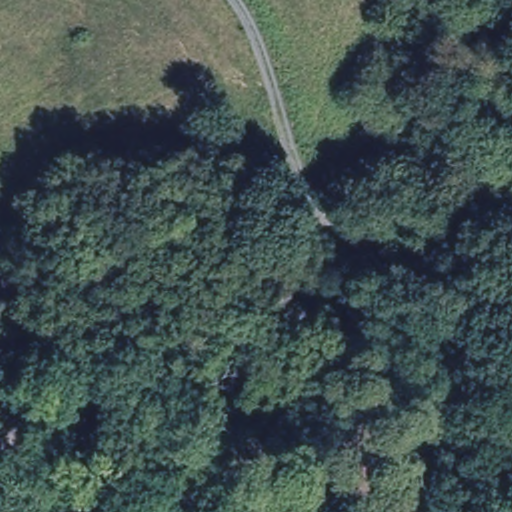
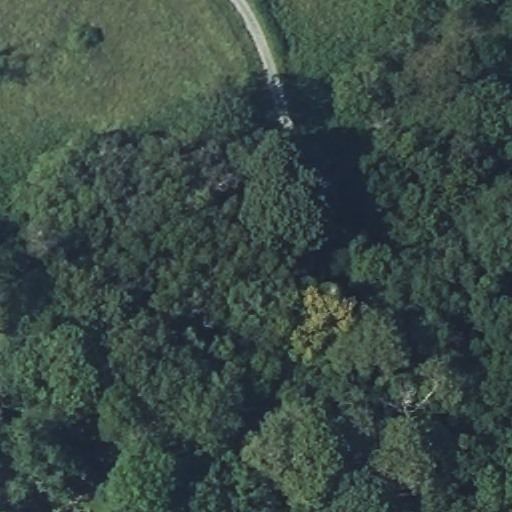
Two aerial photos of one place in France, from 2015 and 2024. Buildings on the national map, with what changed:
unchanged [(349,240),(354,254),(338,260),(333,246),(349,240)]

